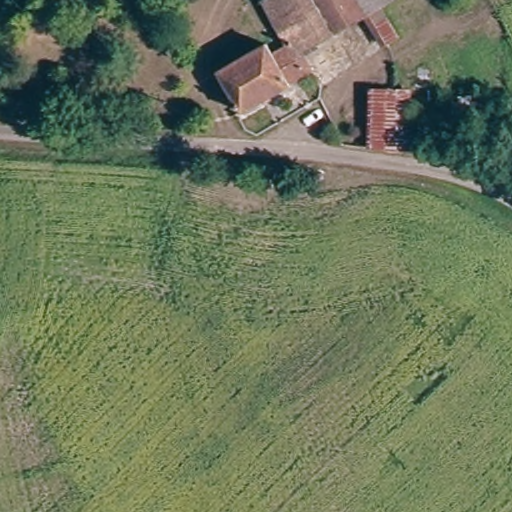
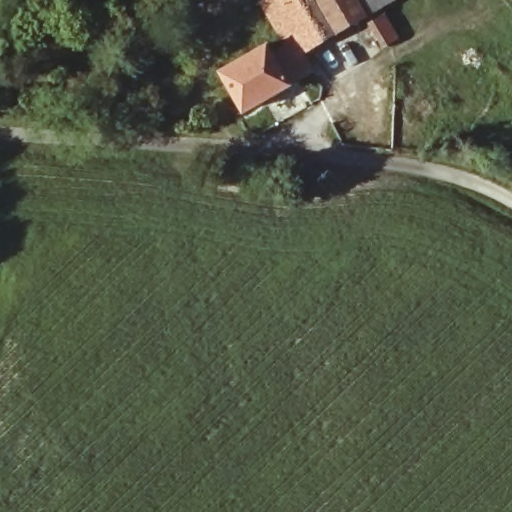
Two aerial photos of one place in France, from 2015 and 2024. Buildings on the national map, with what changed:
unchanged [(234,77),(273,51),(286,70),(296,63),(259,10),(273,0),(358,0),(368,16),(309,59),(320,74),(253,121),(225,83),(234,77)]
unchanged [(368,16),(358,0),(390,0),(382,6),(406,42),(395,50),(370,15),(368,16)]
unchanged [(425,91),(422,155),(375,150),(378,90),(425,91)]
unchanged [(495,92),(493,136),(430,134),(432,90),(495,92)]

